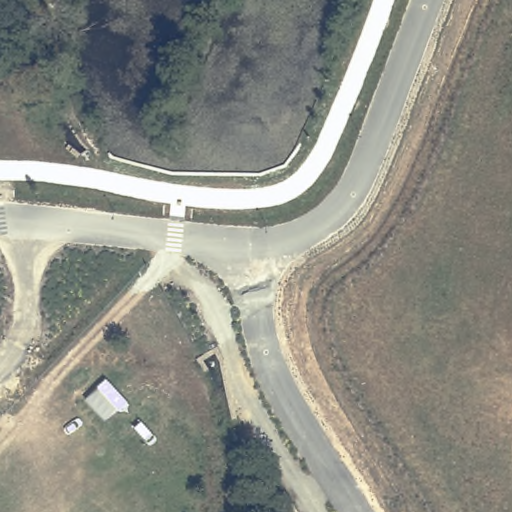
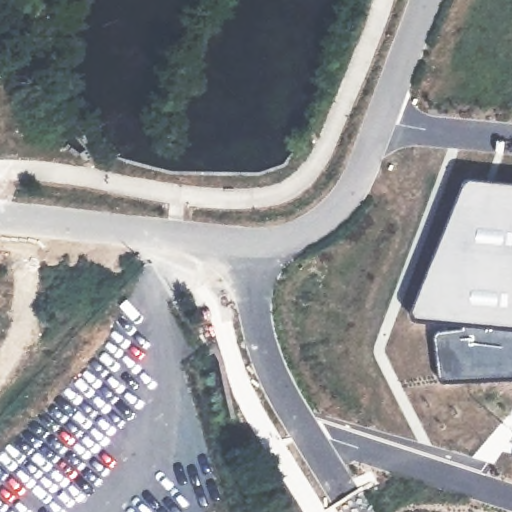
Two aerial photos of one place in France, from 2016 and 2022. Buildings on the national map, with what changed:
new [(465,323),(411,316),(465,177),(512,182),(512,378),(439,380),(433,333),(466,327),(465,323)]

